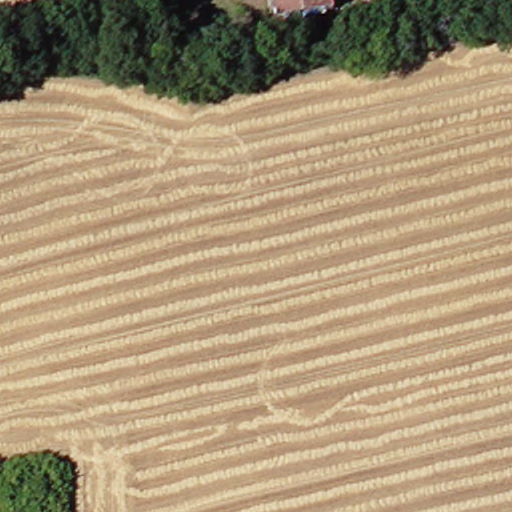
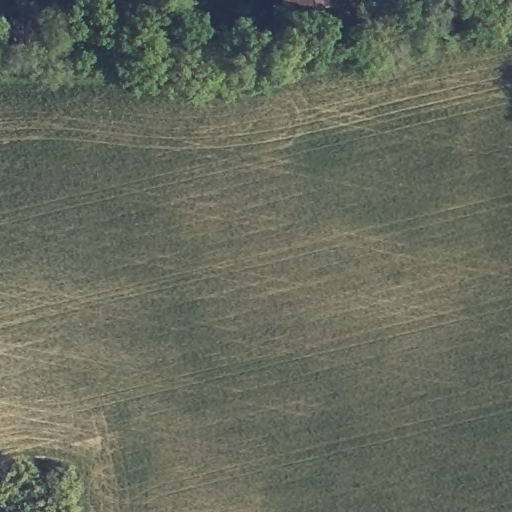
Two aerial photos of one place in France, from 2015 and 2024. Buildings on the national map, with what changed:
unchanged [(291,6),(290,0),(321,0),(291,6)]

